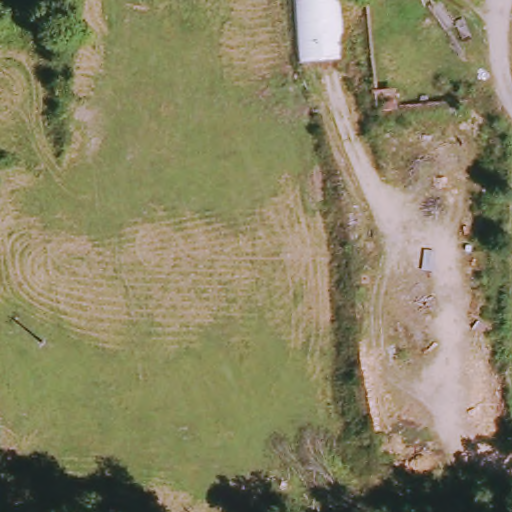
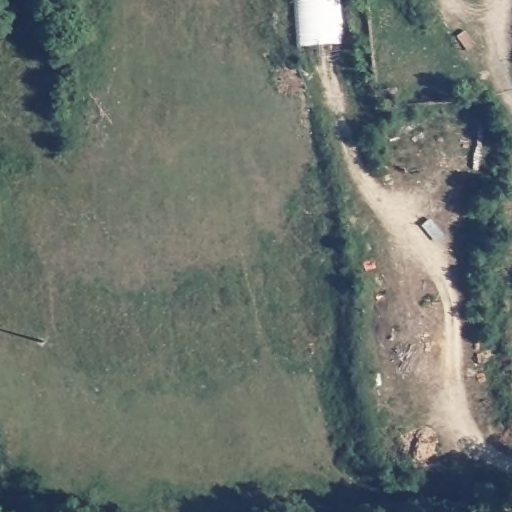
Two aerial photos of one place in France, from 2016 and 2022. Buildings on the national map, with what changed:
unchanged [(299,64),(293,0),(339,0),(345,61),(299,64)]
unchanged [(470,0),(482,0),(482,3),(470,0)]

